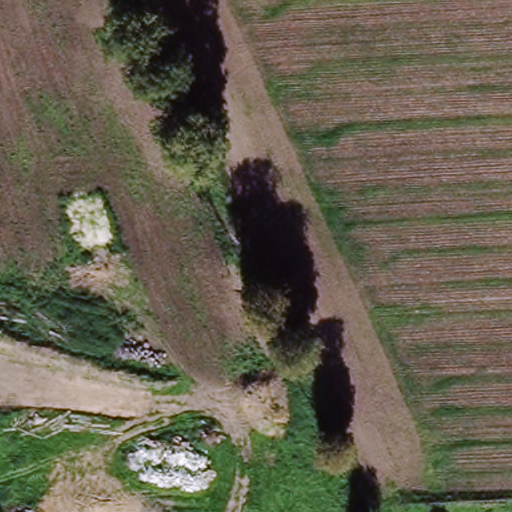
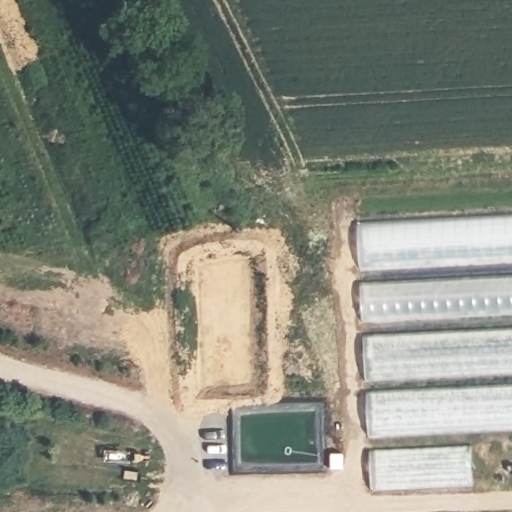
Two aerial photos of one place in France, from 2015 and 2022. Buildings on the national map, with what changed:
new [(512,270),(512,429),(370,437),(360,281),(512,270)]
new [(470,447),(472,487),(373,491),(370,451),(470,447)]

